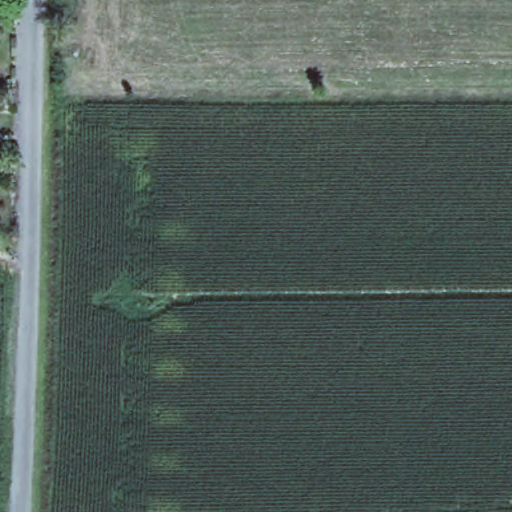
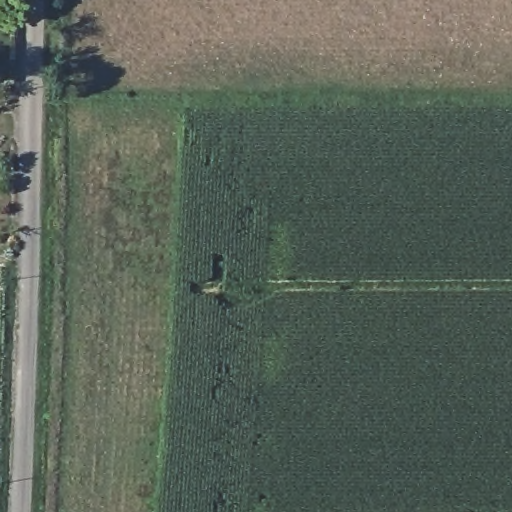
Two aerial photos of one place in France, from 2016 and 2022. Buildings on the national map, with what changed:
[]

